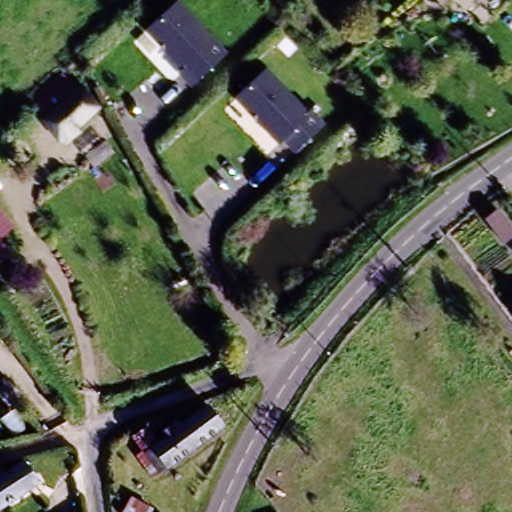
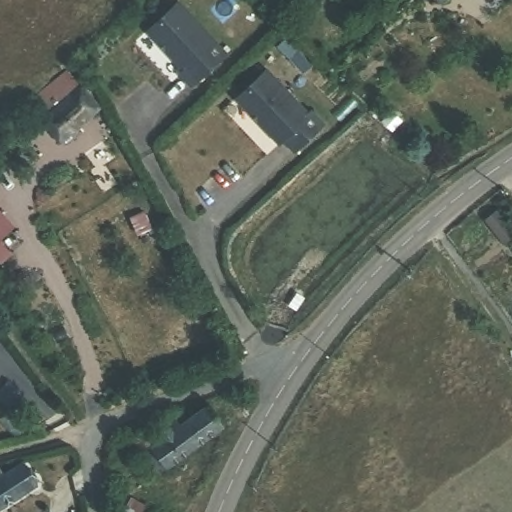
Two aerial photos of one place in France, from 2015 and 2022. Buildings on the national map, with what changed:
unchanged [(443,4),(439,0),(448,0),(443,4)]
unchanged [(221,53),(186,85),(175,73),(180,70),(142,31),(173,2),(207,38),(221,53)]
unchanged [(298,114),(302,111),(314,123),(285,151),(273,140),(270,143),(227,98),(256,70),(298,114)]
unchanged [(98,108),(62,142),(45,123),(48,120),(32,103),(60,77),(76,94),(80,90),(98,108)]
unchanged [(0,257),(0,243),(6,250),(0,257)]
unchanged [(163,466),(144,435),(187,409),(192,416),(215,401),(230,423),(163,466)]
unchanged [(17,464),(34,486),(0,508),(0,476),(17,464)]

